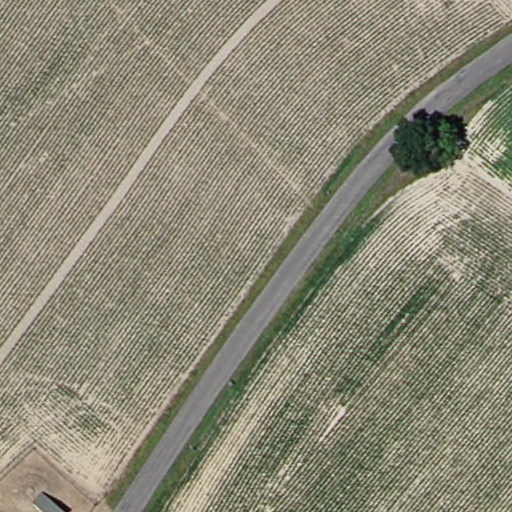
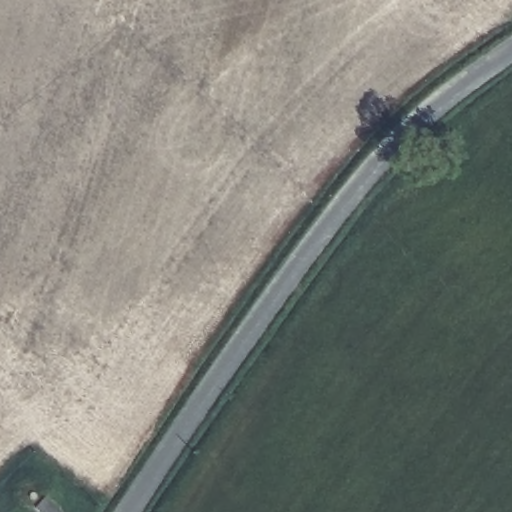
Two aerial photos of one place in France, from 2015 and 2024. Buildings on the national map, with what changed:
unchanged [(40,496),(58,512),(34,512),(29,508),(40,496)]

